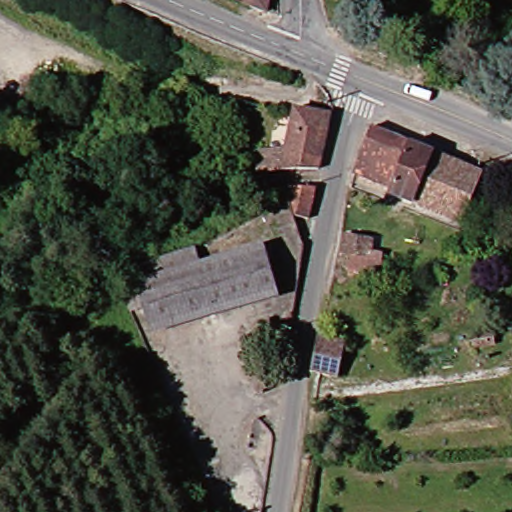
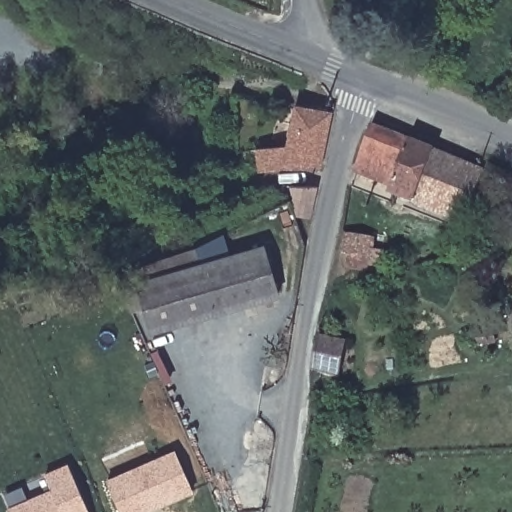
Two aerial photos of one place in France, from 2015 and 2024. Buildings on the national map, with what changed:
unchanged [(271,0),(269,11),(248,3),(249,0),(271,0)]
unchanged [(262,176),(259,155),(289,153),(298,111),(332,119),(323,177),(293,174),(262,176)]
unchanged [(477,229),(466,224),(464,227),(391,198),(394,189),(355,174),(373,130),(486,175),(469,218),(478,223),(477,229)]
unchanged [(292,187),(317,187),(311,219),(298,217),(292,187)]
unchanged [(383,264),(341,267),(348,234),(387,239),(386,264),(383,264)]
unchanged [(132,304),(120,276),(200,248),(205,264),(266,247),(279,294),(154,331),(146,308),(135,312),(132,304)]
unchanged [(490,343),(482,343),(481,334),(489,334),(490,343)]
unchanged [(341,377),(317,371),(313,369),(320,338),(348,344),(341,377)]
new [(152,512),(120,512),(106,480),(175,449),(195,494),(152,512)]
new [(51,489),(45,474),(68,464),(89,512),(9,512),(7,508),(51,489)]

